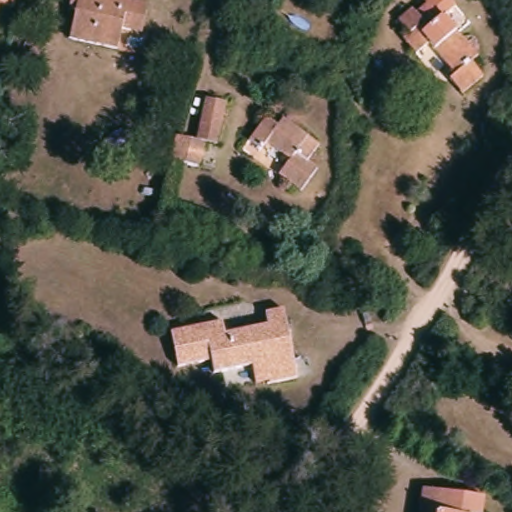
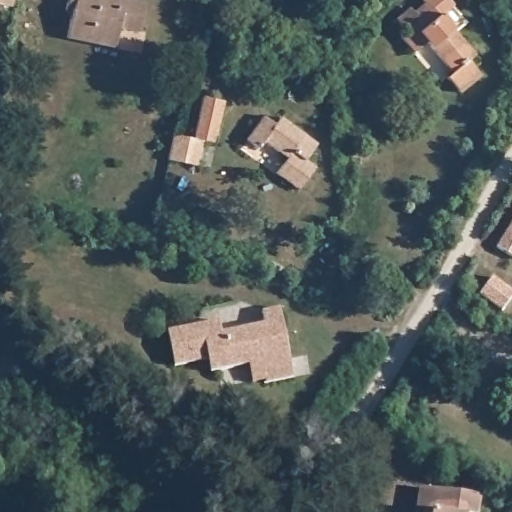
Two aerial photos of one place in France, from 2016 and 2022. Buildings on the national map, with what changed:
unchanged [(8,13),(0,10),(0,0),(11,0),(8,13)]
unchanged [(143,26),(119,24),(117,46),(69,43),(71,18),(63,16),(64,0),(146,0),(143,26)]
unchanged [(413,7),(417,12),(429,3),(427,0),(453,0),(458,7),(445,17),(477,59),(471,63),(482,78),(462,94),(449,79),(454,75),(428,42),(416,52),(403,36),(407,32),(397,21),(413,7)]
unchanged [(191,139),(200,98),(221,102),(212,144),(200,141),(194,166),(165,160),(171,134),(191,139)]
unchanged [(274,121),(278,116),(315,143),(302,159),(313,166),(297,188),(274,172),(285,157),(262,141),(258,144),(251,154),(239,145),(247,135),(262,113),(274,121)]
new [(512,252),(499,244),(512,222),(512,252)]
new [(512,290),(512,296),(502,310),(480,293),(493,275),(512,290)]
unchanged [(219,321),(221,334),(263,329),(262,316),(283,315),(290,379),(261,382),(261,379),(249,380),(247,365),(207,369),(206,360),(171,363),(167,328),(219,321)]
unchanged [(440,488),(485,494),(482,512),(414,512),(418,484),(440,488)]

